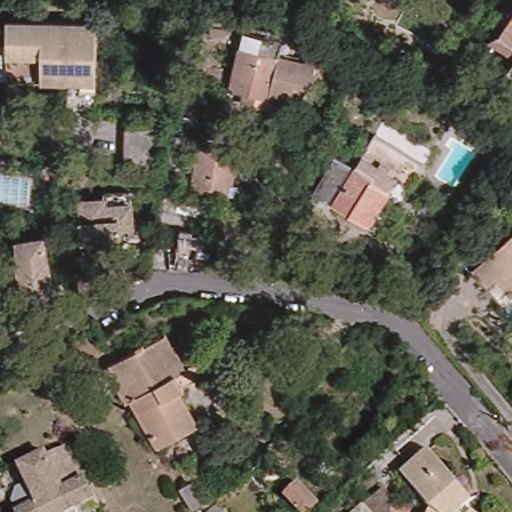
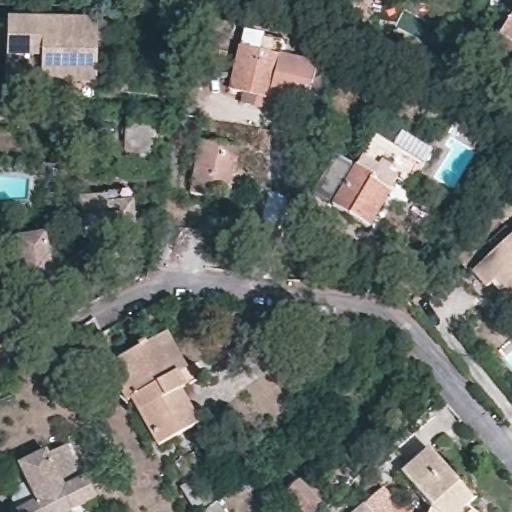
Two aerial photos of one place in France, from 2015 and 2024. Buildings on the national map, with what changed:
unchanged [(442,24),(427,0),(449,0),(442,24)]
unchanged [(72,67),(71,82),(9,79),(10,16),(100,17),(98,69),(72,67)]
unchanged [(501,38),(512,20),(512,45),(501,38)]
unchanged [(313,94),(306,92),(296,90),(291,110),(231,93),(246,37),(284,46),(281,61),(303,67),(319,72),(313,94)]
unchanged [(97,106),(70,105),(71,82),(72,67),(98,69),(97,106)]
unchanged [(509,75),(512,69),(512,78),(509,75)]
unchanged [(125,170),(128,124),(159,125),(157,171),(125,170)]
unchanged [(426,161),(413,185),(402,179),(402,180),(372,231),(337,208),(349,188),(334,180),(344,162),(359,171),(366,159),(361,156),(376,130),(426,161)]
unchanged [(234,197),(233,200),(193,194),(201,144),(241,150),(238,165),(252,167),(246,200),(234,197)]
unchanged [(136,225),(124,226),(126,254),(98,256),(96,241),(87,241),(83,197),(132,192),(136,225)]
unchanged [(58,287),(28,292),(18,236),(49,231),(58,287)]
unchanged [(504,285),(497,278),(488,287),(473,272),(512,231),(512,292),(504,285)]
unchanged [(182,388),(201,420),(161,445),(133,397),(128,400),(108,365),(153,337),(166,330),(188,365),(178,370),(188,385),(182,388)]
unchanged [(11,336),(15,345),(0,353),(0,338),(0,340),(11,336)]
unchanged [(22,485),(13,465),(43,451),(44,456),(63,446),(69,460),(73,458),(93,501),(71,512),(11,512),(8,502),(12,490),(22,485)]
unchanged [(472,503),(484,512),(433,512),(434,510),(402,473),(430,450),(475,500),(472,503)]
unchanged [(222,493),(207,500),(196,478),(211,471),(222,493)]
unchanged [(307,512),(300,512),(286,495),(298,482),(316,503),(307,512)]
unchanged [(394,507),(389,512),(356,512),(381,490),(394,507)]

